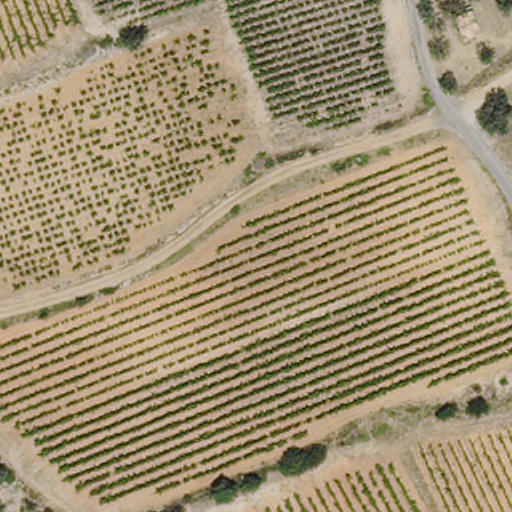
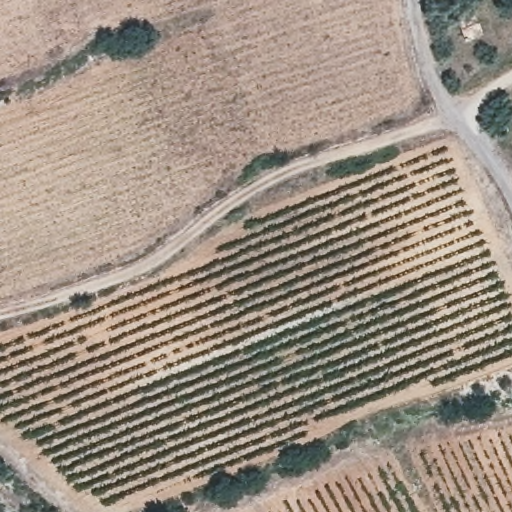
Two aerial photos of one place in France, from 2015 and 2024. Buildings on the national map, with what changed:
unchanged [(465,46),(460,23),(478,17),(485,39),(465,46)]

